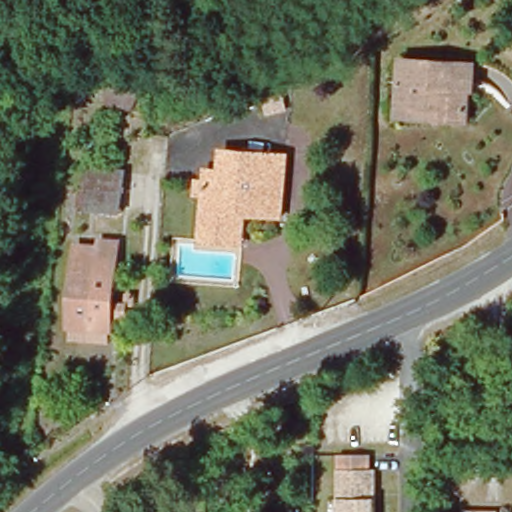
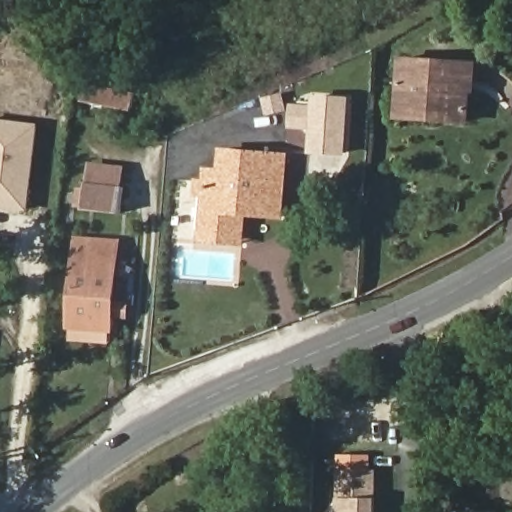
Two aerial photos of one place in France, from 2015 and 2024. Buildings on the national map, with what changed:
unchanged [(409,108),(410,81),(401,80),(403,59),(470,62),(468,116),(443,116),(443,109),(409,108)]
new [(92,104),(95,85),(135,93),(132,111),(92,104)]
new [(290,105),(314,106),(315,95),(351,98),(347,156),(310,154),(311,130),(289,129),(290,105)]
new [(30,212),(0,208),(0,119),(40,124),(30,212)]
unchanged [(228,238),(201,236),(209,168),(220,169),(222,147),(283,151),(280,209),(249,207),(246,239),(228,238)]
unchanged [(115,195),(83,192),(85,166),(119,171),(115,195)]
unchanged [(80,232),(102,234),(102,228),(118,229),(105,340),(67,337),(80,232)]
unchanged [(461,449),(461,465),(431,464),(432,448),(461,449)]
unchanged [(369,453),(370,468),(376,468),(376,512),(335,512),(335,453),(369,453)]

